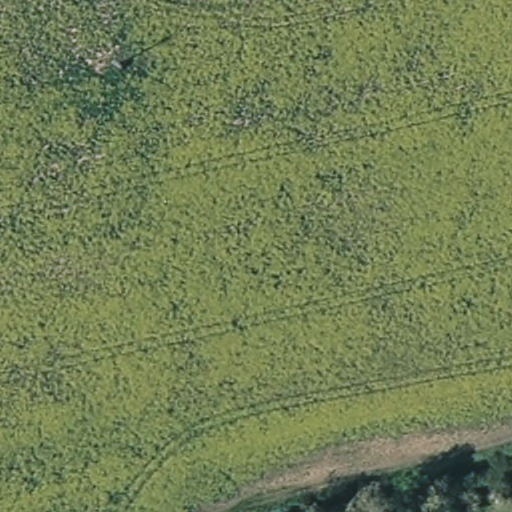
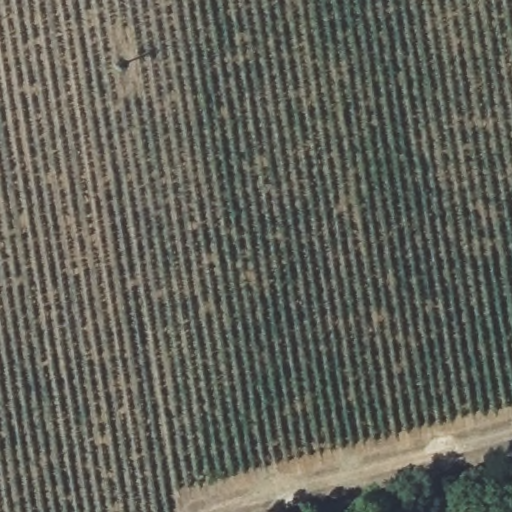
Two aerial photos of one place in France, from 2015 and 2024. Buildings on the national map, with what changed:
[]

